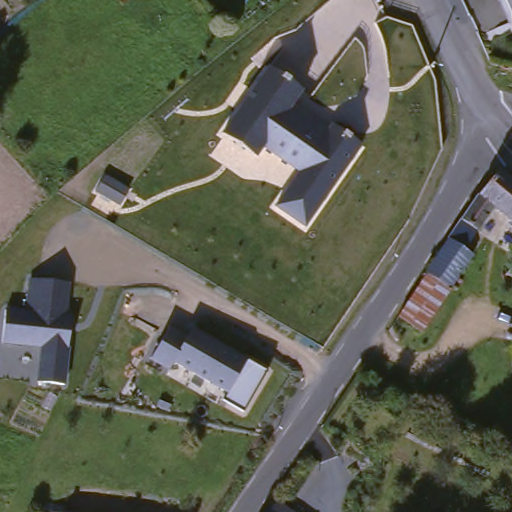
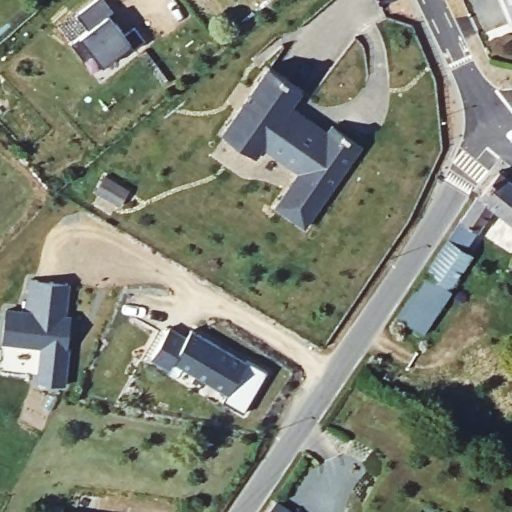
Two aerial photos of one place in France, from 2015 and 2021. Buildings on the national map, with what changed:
new [(76,14),(93,0),(104,0),(113,11),(109,14),(125,33),(134,25),(146,39),(135,47),(131,42),(104,65),(94,53),(85,60),(71,43),(89,29),(76,14)]
unchanged [(299,91),(290,105),(326,126),(330,122),(358,141),(304,224),(275,204),(298,169),(263,145),(254,155),(219,130),(264,66),(299,91)]
unchanged [(496,203),(481,225),(466,215),(483,190),(504,165),(512,172),(512,214),(496,203)]
unchanged [(488,257),(478,274),(466,267),(455,284),(432,269),(431,269),(453,234),(488,257)]
unchanged [(455,284),(426,327),(413,319),(403,311),(415,294),(432,269),(455,284)]
unchanged [(40,348),(3,343),(5,307),(26,309),(30,277),(72,282),(68,317),(73,319),(66,385),(38,381),(40,348)]
unchanged [(174,364),(169,371),(150,362),(166,333),(183,343),(193,327),(268,370),(243,411),(223,400),(228,394),(174,364)]
unchanged [(48,497),(70,501),(68,508),(97,512),(46,512),(48,497)]
unchanged [(297,512),(273,512),(281,501),(297,512)]

